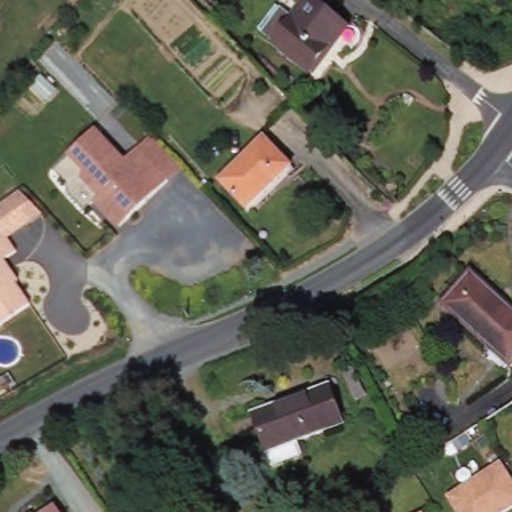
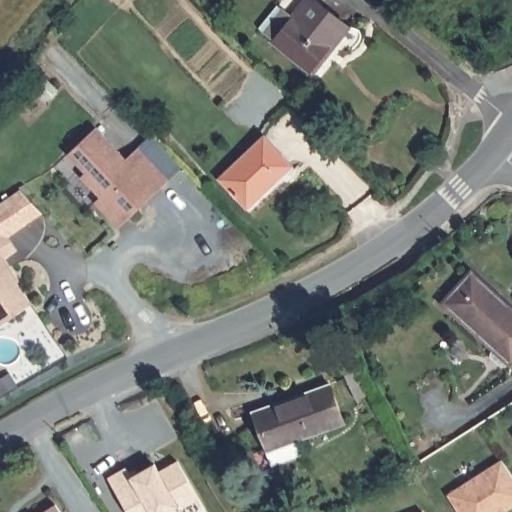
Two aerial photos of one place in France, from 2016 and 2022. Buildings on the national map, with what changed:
unchanged [(304,0),(319,0),(348,29),(331,45),(328,43),(303,68),(269,34),(304,0)]
unchanged [(116,216),(97,198),(103,191),(85,174),(94,164),(75,146),(98,122),(129,152),(143,137),(151,145),(176,170),(137,210),(125,223),(116,216)]
unchanged [(265,136),(292,164),(248,207),(220,179),(265,136)]
unchanged [(26,272),(20,277),(35,295),(6,318),(0,312),(0,204),(20,191),(43,218),(14,238),(18,243),(16,245),(9,251),(26,272)]
unchanged [(443,300),(470,268),(489,283),(512,303),(512,361),(474,328),(443,300)]
unchanged [(269,453),(249,416),(321,383),(341,421),(269,453)]
unchanged [(501,455),(512,472),(512,502),(496,512),(461,512),(447,490),(501,455)]
new [(179,511),(176,506),(168,512),(127,512),(107,478),(122,469),(125,473),(133,469),(137,473),(154,464),(158,472),(176,461),(198,500),(179,511)]
unchanged [(66,512),(38,512),(58,499),(66,512)]
unchanged [(37,512),(24,512),(32,506),(37,512)]
unchanged [(425,512),(413,512),(421,506),(425,512)]

